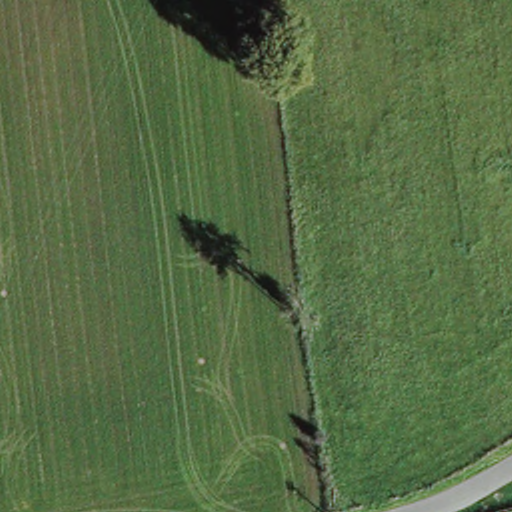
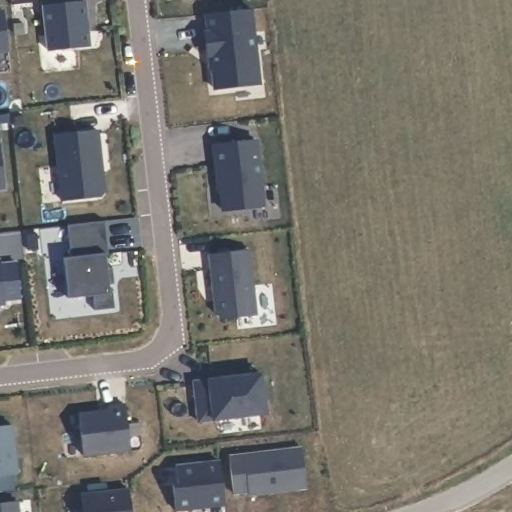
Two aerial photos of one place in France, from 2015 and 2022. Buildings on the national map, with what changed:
new [(83,1),(88,46),(47,51),(41,0),(77,0),(77,1),(83,1)]
new [(205,30),(203,14),(247,9),(256,86),(212,91),(207,51),(204,51),(202,31),(205,30)]
new [(2,10),(6,50),(0,51),(0,11),(2,10)]
new [(96,130),(104,197),(62,202),(54,135),(96,130)]
new [(250,136),(257,201),(227,204),(222,200),(215,140),(250,136)]
new [(2,188),(0,188),(0,175),(2,188)]
new [(70,257),(66,225),(103,221),(106,253),(104,254),(108,292),(112,292),(113,308),(94,310),(92,295),(67,298),(62,258),(70,257)]
new [(243,250),(251,315),(220,318),(215,314),(208,254),(243,250)]
new [(16,270),(19,298),(4,300),(4,303),(0,304),(0,272),(16,270)]
new [(274,366),(278,400),(196,409),(192,376),(274,366)]
new [(107,404),(106,401),(123,399),(128,450),(82,455),(77,408),(107,404)]
new [(10,425),(16,474),(0,476),(0,427),(10,425)]
new [(298,447),(302,486),(246,492),(245,489),(231,490),(226,454),(298,447)]
new [(175,484),(173,466),(217,462),(222,504),(204,506),(204,505),(190,506),(190,508),(172,510),(170,485),(175,484)]
new [(129,502),(130,512),(79,512),(79,508),(129,502)]
new [(16,504),(17,512),(0,512),(0,506),(16,504)]

